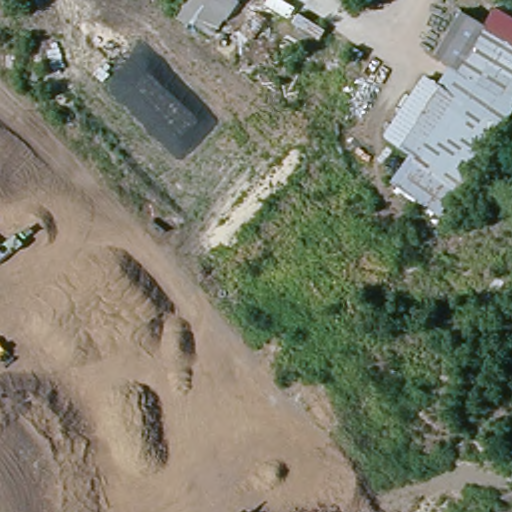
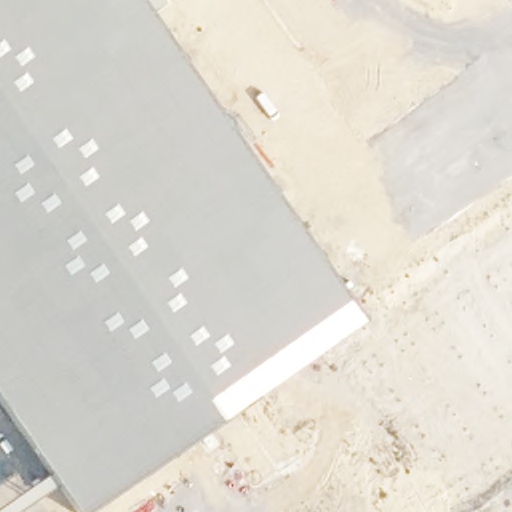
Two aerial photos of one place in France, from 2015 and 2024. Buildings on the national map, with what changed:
new [(168,2),(154,13),(364,318),(88,512),(77,512),(0,401),(0,0),(166,0),(168,2)]
unchanged [(512,105),(435,220),(378,187),(393,162),(372,149),(414,74),(427,85),(437,71),(423,60),(453,9),(512,46),(512,105)]

